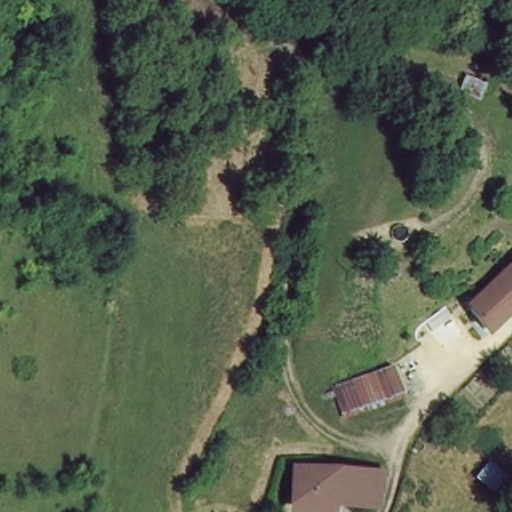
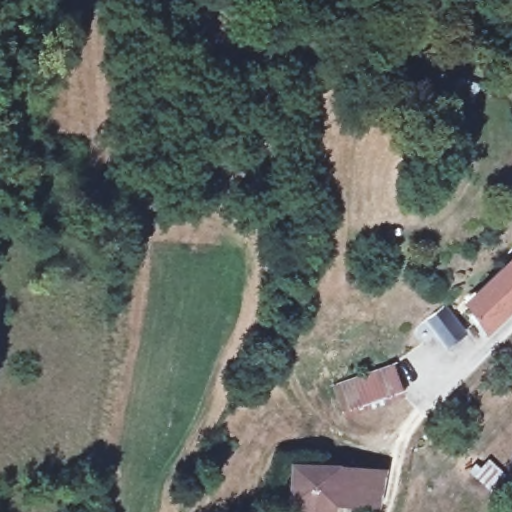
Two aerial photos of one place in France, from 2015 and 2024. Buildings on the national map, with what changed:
unchanged [(463,316),(491,281),(509,256),(512,259),(512,303),(485,336),(463,316)]
unchanged [(348,418),(331,385),(389,356),(405,391),(348,418)]
unchanged [(293,505),(294,461),(358,470),(378,472),(374,512),(356,512),(293,505)]

